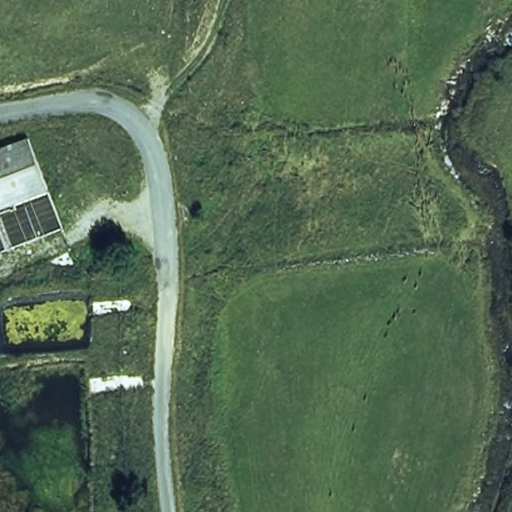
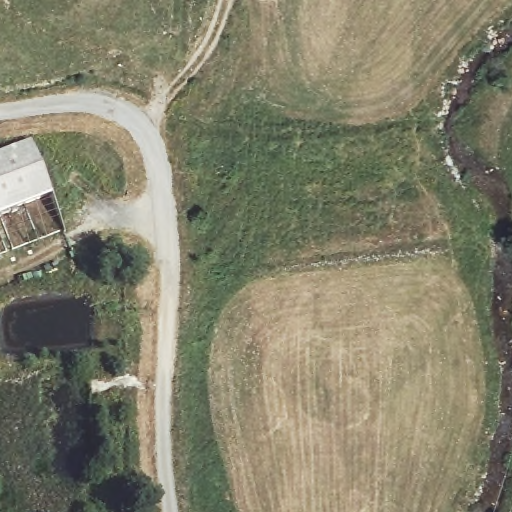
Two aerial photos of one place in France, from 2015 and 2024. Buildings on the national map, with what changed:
unchanged [(57,209),(0,234),(0,144),(21,134),(57,209)]

